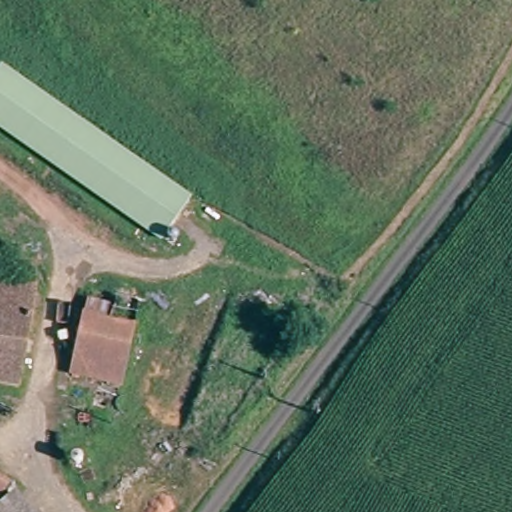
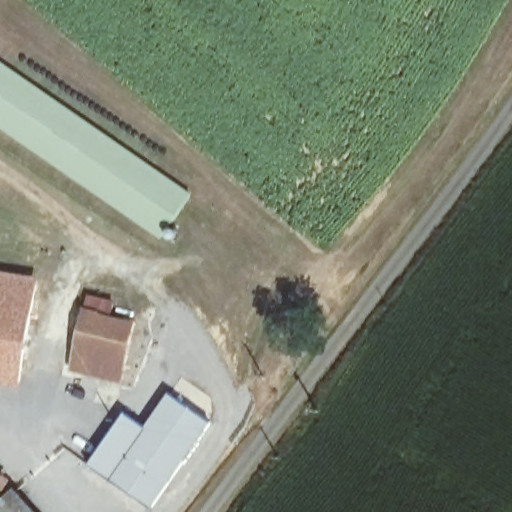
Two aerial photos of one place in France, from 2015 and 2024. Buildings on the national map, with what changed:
unchanged [(166,233),(0,116),(0,65),(3,61),(193,195),(166,233)]
unchanged [(0,369),(0,263),(9,263),(35,266),(24,371),(0,369)]
unchanged [(131,327),(120,381),(71,371),(83,309),(86,295),(110,300),(108,314),(133,319),(131,327)]
new [(146,427),(169,393),(212,423),(153,510),(88,467),(126,413),(146,427)]
unchanged [(0,494),(0,485),(4,487),(0,494)]
unchanged [(0,512),(0,508),(3,504),(12,495),(30,512),(0,512)]

